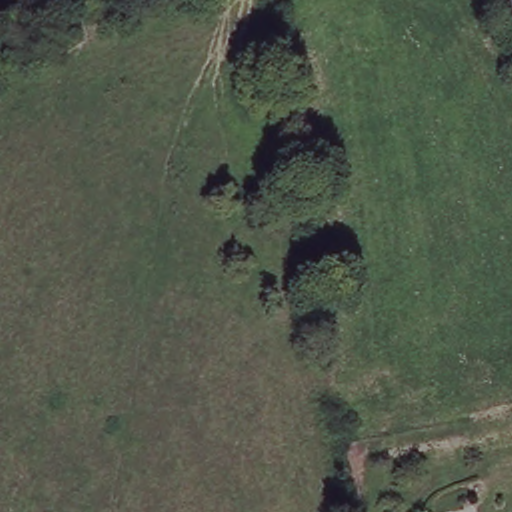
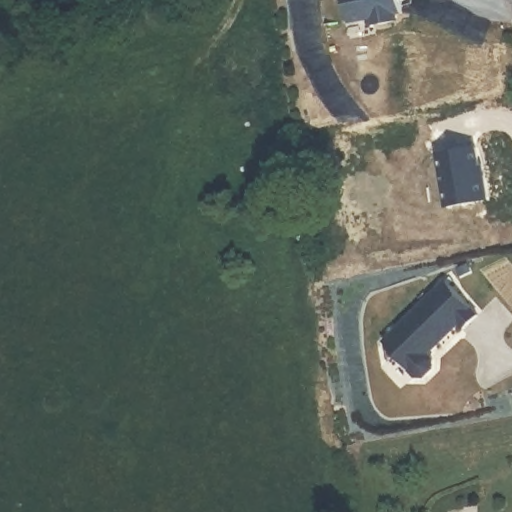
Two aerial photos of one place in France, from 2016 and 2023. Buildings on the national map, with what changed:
new [(402,10),(392,12),(394,20),(372,25),(372,17),(347,20),(341,0),(400,0),(402,10)]
new [(474,147),(480,176),(483,175),(487,197),(445,205),(436,154),(474,147)]
new [(447,277),(480,311),(466,325),(461,319),(429,350),(434,356),(434,365),(424,374),(417,374),(383,339),(447,277)]

